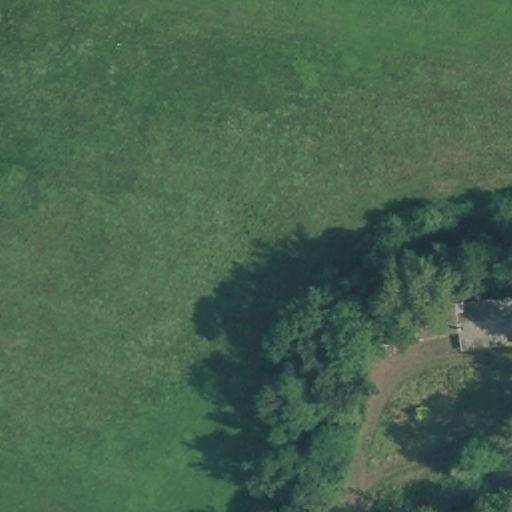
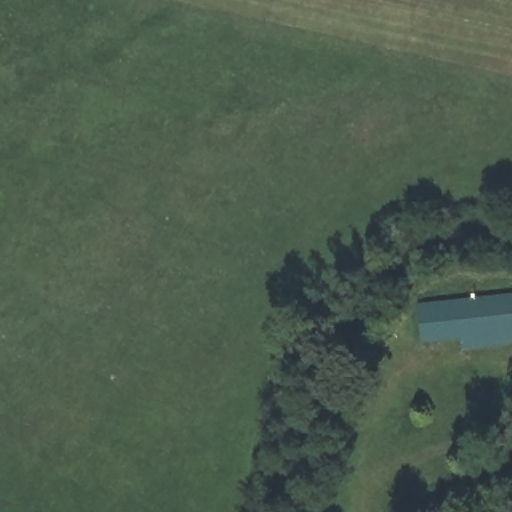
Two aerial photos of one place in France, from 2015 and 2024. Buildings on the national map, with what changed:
demolished [(471,298),(512,290),(512,316),(472,322),(471,298)]
new [(512,346),(463,352),(462,339),(422,343),(418,303),(512,294),(512,346)]

